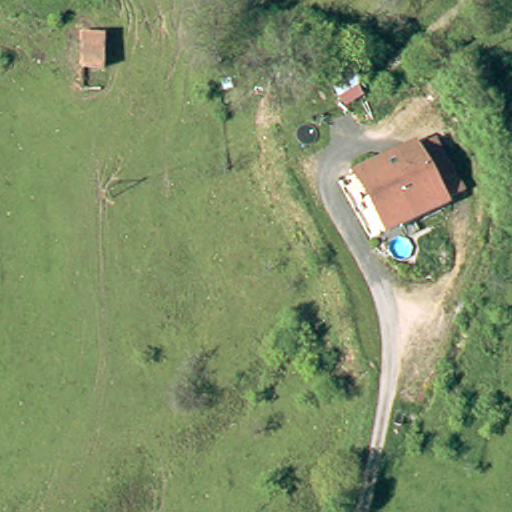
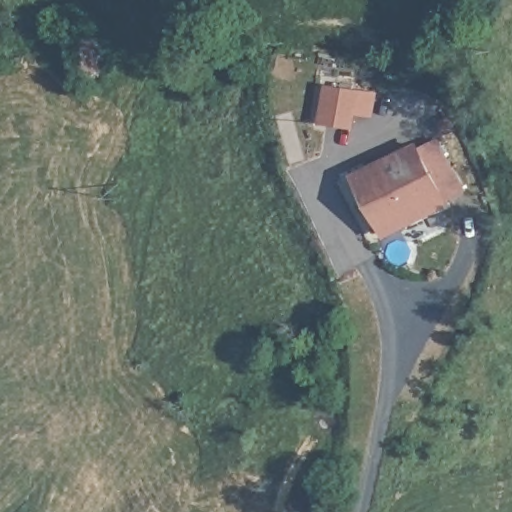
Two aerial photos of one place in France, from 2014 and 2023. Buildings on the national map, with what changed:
unchanged [(108,42),(109,77),(86,78),(85,42),(108,42)]
new [(377,91),(373,117),(358,115),(355,130),(318,123),(325,84),(377,91)]
unchanged [(390,245),(357,192),(422,148),(458,198),(390,245)]

